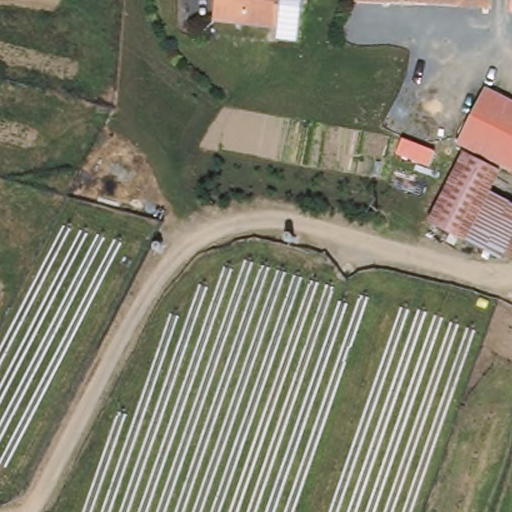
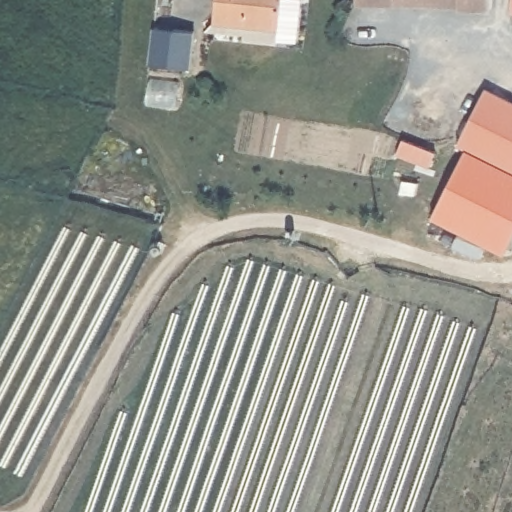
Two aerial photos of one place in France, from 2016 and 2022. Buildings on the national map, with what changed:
unchanged [(278,0),(274,29),(274,31),(241,27),(215,24),(218,0),(278,0)]
unchanged [(287,0),(298,0),(298,1),(287,0)]
unchanged [(355,0),(356,0),(493,0),(493,8),(355,0)]
unchanged [(510,14),(512,1),(512,14),(510,14)]
new [(155,29),(195,35),(190,72),(150,66),(155,29)]
unchanged [(461,143),(486,84),(512,97),(512,168),(461,143)]
unchanged [(430,222),(465,150),(502,170),(492,190),(512,201),(512,263),(430,222)]

